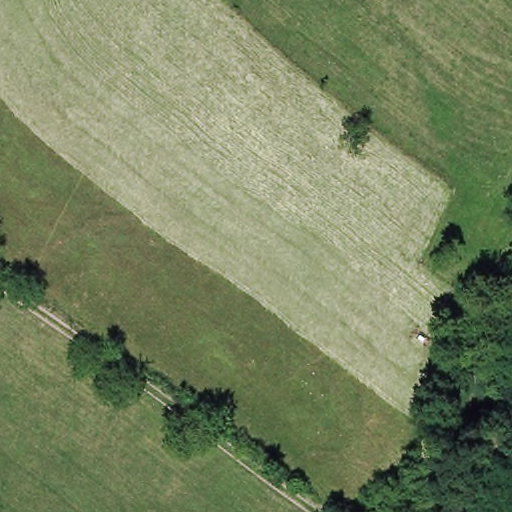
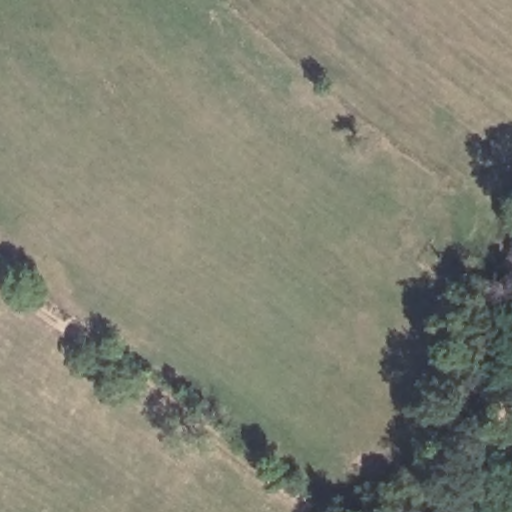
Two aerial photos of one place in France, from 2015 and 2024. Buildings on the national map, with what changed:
[]

